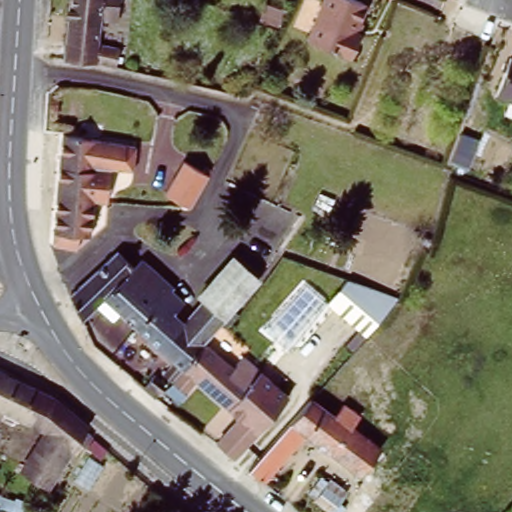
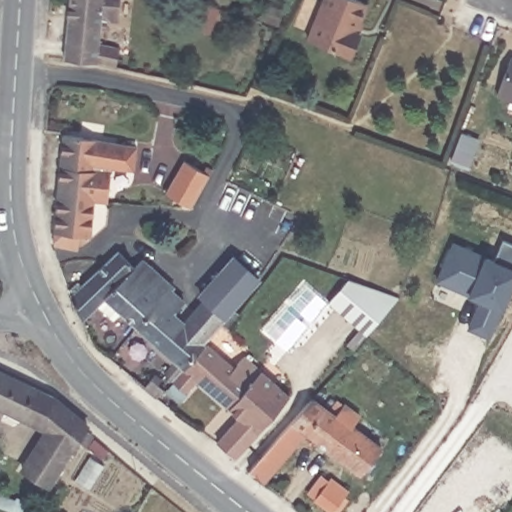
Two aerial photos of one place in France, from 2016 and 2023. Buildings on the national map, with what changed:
unchanged [(115,0),(114,12),(100,11),(97,42),(118,44),(116,65),(94,60),(64,57),(69,0),(115,0)]
unchanged [(359,27),(350,50),(309,33),(322,0),(365,0),(355,26),(359,27)]
unchanged [(510,52),(512,53),(512,96),(497,90),(510,52)]
unchanged [(140,162),(133,160),(128,172),(116,167),(115,161),(95,156),(93,166),(106,169),(110,172),(109,187),(117,188),(119,190),(119,198),(115,197),(106,217),(89,214),(86,232),(73,230),(71,242),(50,239),(59,129),(121,142),(125,132),(149,142),(148,144),(140,162)]
unchanged [(166,194),(183,161),(202,171),(205,167),(211,170),(205,182),(190,207),(166,194)]
new [(492,338),(469,329),(480,302),(468,296),(469,292),(437,282),(452,243),(484,255),(512,267),(512,291),(504,312),(492,338)]
unchanged [(71,292),(118,246),(135,260),(125,271),(100,299),(82,317),(71,292)]
unchanged [(224,317),(222,316),(182,363),(119,307),(115,312),(100,299),(125,271),(135,260),(142,252),(183,290),(183,297),(173,307),(182,316),(203,292),(203,287),(234,253),(257,273),(223,312),(231,317),(228,321),(224,317)]
unchanged [(364,331),(327,297),(349,272),(398,292),(364,331)]
unchanged [(211,342),(230,360),(237,351),(245,352),(289,392),(262,423),(233,452),(217,438),(240,415),(197,376),(186,388),(171,376),(182,363),(222,316),(224,317),(228,321),(211,342)]
unchanged [(56,400),(86,427),(85,429),(52,487),(22,469),(45,429),(0,407),(0,372),(56,400)]
unchanged [(156,398),(144,388),(155,376),(160,381),(157,384),(163,390),(156,398)]
unchanged [(384,451),(366,474),(364,476),(311,432),(269,482),(256,472),(255,471),(308,410),(316,400),(353,431),(356,427),(384,451)]
unchanged [(331,512),(329,512),(313,500),(329,479),(347,492),(331,512)]

